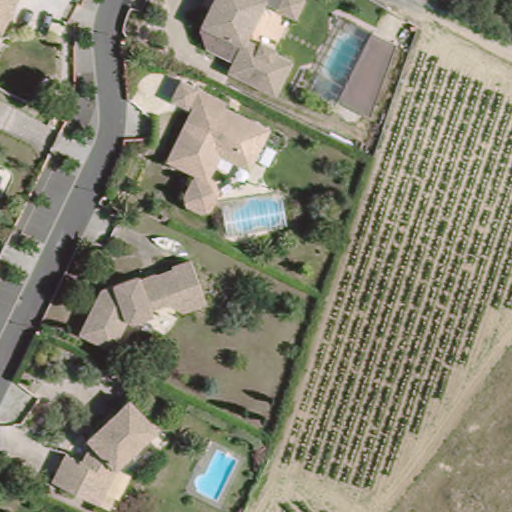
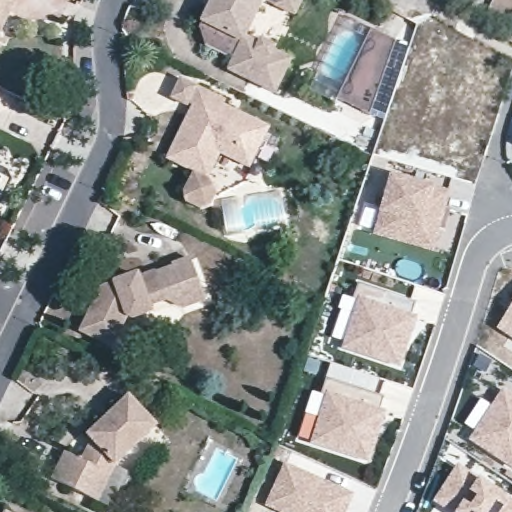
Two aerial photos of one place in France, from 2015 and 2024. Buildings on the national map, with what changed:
unchanged [(0,14),(0,0),(13,0),(5,17),(0,14)]
unchanged [(270,9),(260,5),(255,7),(240,41),(255,47),(256,43),(271,50),(269,54),(287,62),(272,95),(225,74),(230,64),(201,51),(195,33),(205,11),(209,0),(297,0),(290,17),(270,9)]
unchanged [(402,39),(376,114),(344,96),(378,26),(402,39)]
unchanged [(175,167),(200,112),(196,111),(193,117),(180,110),(190,90),(203,97),(236,112),(234,117),(275,137),(260,170),(259,172),(224,157),(210,184),(220,187),(210,212),(183,200),(195,177),(175,167)]
new [(432,252),(375,236),(380,213),(391,174),(433,186),(451,193),(432,252)]
unchanged [(165,306),(148,310),(149,315),(131,320),(121,315),(108,343),(76,328),(96,283),(135,272),(138,278),(174,267),(172,261),(190,255),(202,291),(185,297),(183,292),(164,297),(165,306)]
new [(410,316),(418,317),(401,367),(343,349),(358,301),(354,299),(360,283),(416,302),(410,316)]
new [(512,304),(512,339),(496,328),(512,304)]
new [(379,411),(386,412),(370,464),(311,443),(326,397),(321,395),(327,378),(385,397),(379,411)]
new [(504,390),(512,395),(512,466),(470,440),(504,390)]
unchanged [(154,429),(117,466),(101,501),(53,478),(65,451),(81,460),(91,441),(88,437),(130,398),(154,429)]
new [(355,496),(347,512),(277,512),(265,507),(285,463),(355,496)]
new [(435,502),(459,465),(480,478),(510,500),(512,500),(512,512),(450,512),(435,502)]

